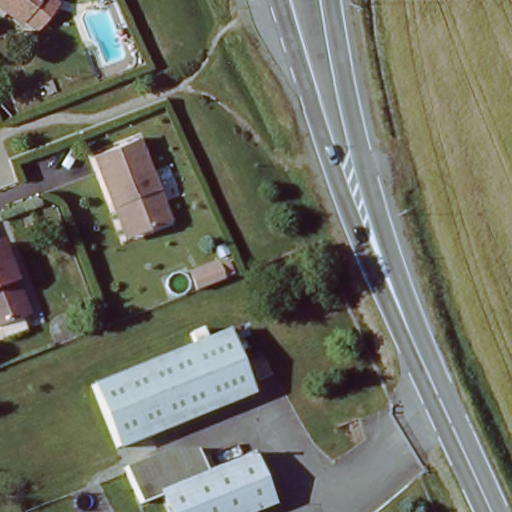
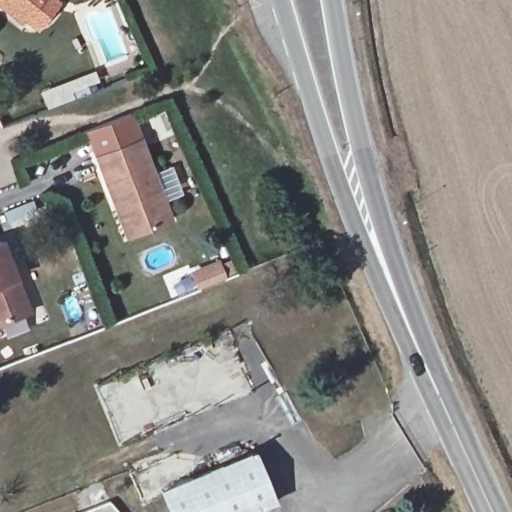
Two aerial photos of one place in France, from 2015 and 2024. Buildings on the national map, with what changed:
unchanged [(0,15),(0,0),(40,0),(19,25),(16,28),(5,19),(0,15)]
unchanged [(113,206),(95,156),(139,141),(169,223),(132,236),(124,238),(113,206)]
unchanged [(4,242),(28,316),(0,325),(0,244),(4,242)]
demolished [(227,336),(251,397),(122,446),(97,385),(227,336)]
unchanged [(155,492),(252,450),(279,507),(266,512),(163,512),(155,492)]

